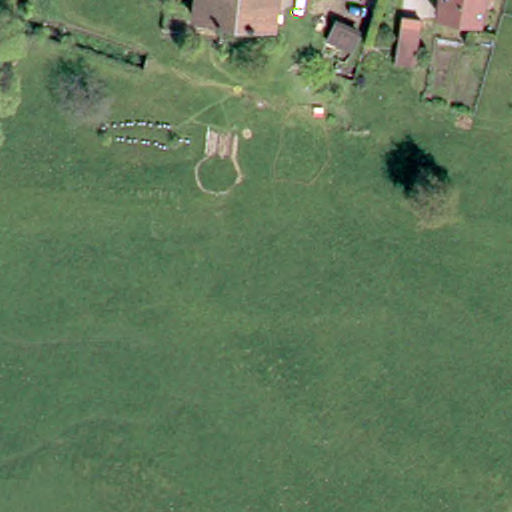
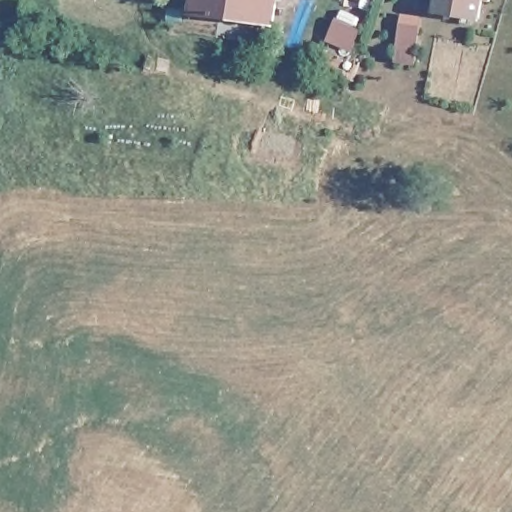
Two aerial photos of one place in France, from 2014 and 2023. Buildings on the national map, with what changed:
unchanged [(272,33),(193,22),(195,0),(276,0),(272,33)]
unchanged [(486,7),(480,5),(476,23),(437,17),(440,0),(487,0),(486,7)]
unchanged [(352,50),(330,39),(336,24),(359,35),(352,50)]
unchanged [(414,63),(395,60),(400,25),(410,27),(420,29),(417,40),(414,63)]

